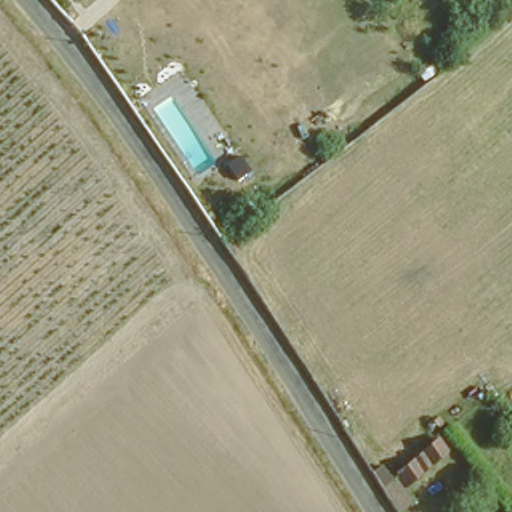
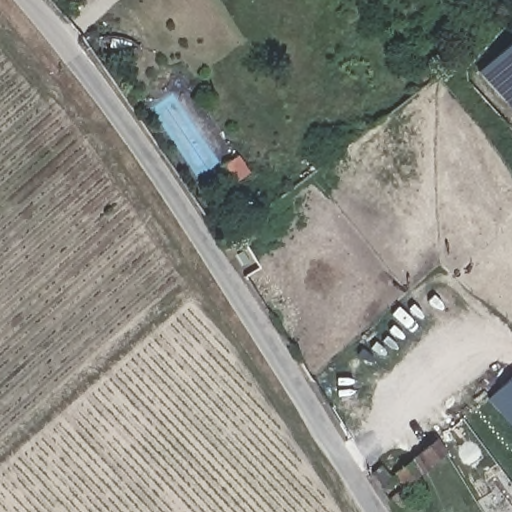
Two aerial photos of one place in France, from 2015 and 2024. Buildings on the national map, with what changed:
new [(512,41),(512,109),(478,72),(512,41)]
unchanged [(470,422),(398,485),(389,472),(404,459),(459,409),(470,422)]

